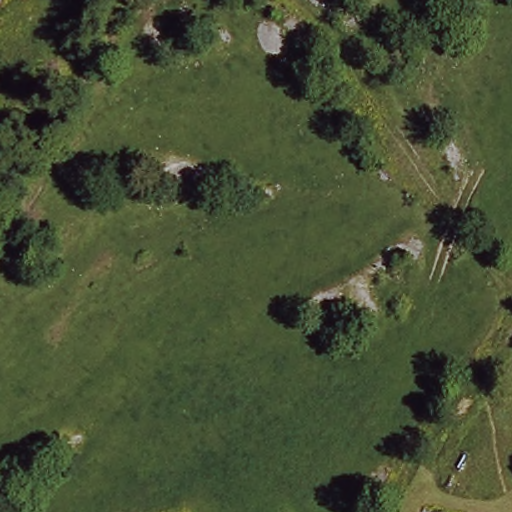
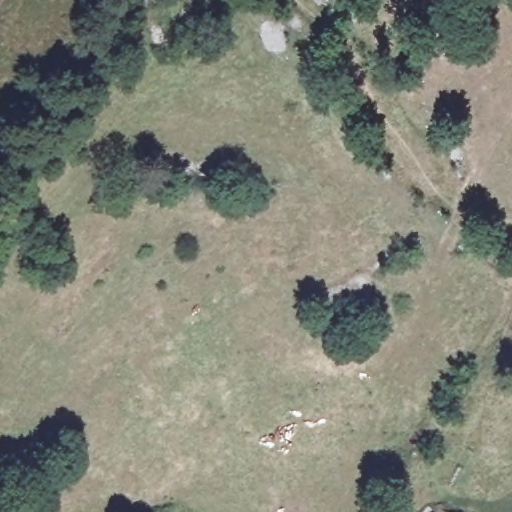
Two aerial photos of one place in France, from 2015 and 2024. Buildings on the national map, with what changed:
unchanged [(437,507),(444,512),(434,512),(437,507)]
unchanged [(476,510),(479,512),(474,512),(476,510)]

